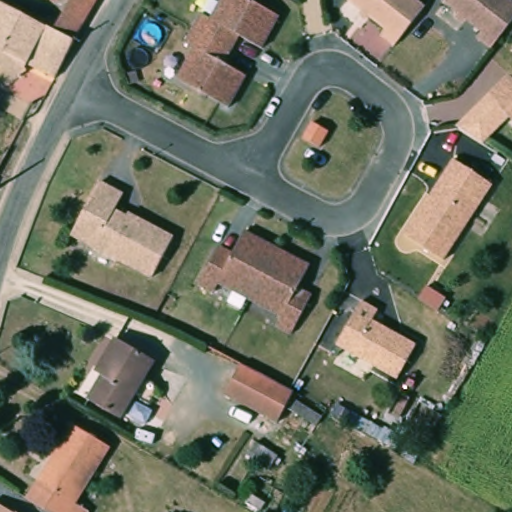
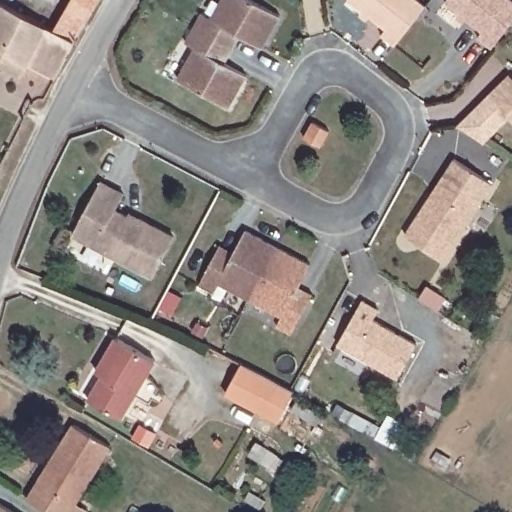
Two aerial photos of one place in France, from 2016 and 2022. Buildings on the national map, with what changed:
unchanged [(65,41),(46,31),(65,0),(88,0),(65,41)]
unchanged [(200,10),(209,14),(217,0),(253,0),(278,14),(259,46),(234,33),(226,48),(190,27),(200,10)]
unchanged [(420,4),(388,45),(372,32),(378,24),(346,0),(414,0),(420,4)]
unchanged [(471,38),(477,27),(440,0),(505,0),(512,5),(512,14),(486,49),(471,38)]
unchanged [(65,41),(45,80),(19,65),(14,74),(0,66),(0,6),(46,31),(65,41)]
unchanged [(226,48),(218,63),(243,76),(223,107),(174,78),(191,47),(181,42),(190,27),(226,48)]
unchanged [(480,97),(494,80),(499,84),(512,73),(512,129),(480,97)]
unchanged [(325,129),(317,145),(297,134),(306,118),(325,129)]
unchanged [(486,188),(438,261),(398,237),(446,162),(486,188)]
unchanged [(118,196),(112,206),(171,237),(149,279),(68,236),(95,185),(118,196)]
unchanged [(247,298),(219,283),(213,294),(195,285),(216,244),(231,252),(242,229),(274,245),(247,298)]
unchanged [(306,262),(295,282),(312,292),(288,334),(271,325),(277,314),(247,298),(274,245),(306,262)]
unchanged [(378,312),(373,319),(411,342),(390,379),(332,344),(357,301),(378,312)]
unchanged [(151,362),(114,421),(83,403),(100,374),(95,371),(115,339),(151,362)]
unchanged [(264,376),(286,389),(291,392),(270,424),(221,392),(239,362),(264,376)]
unchanged [(75,412),(111,433),(75,492),(90,500),(83,512),(70,512),(30,487),(39,472),(75,412)]
unchanged [(0,512),(0,506),(11,512),(0,512)]

